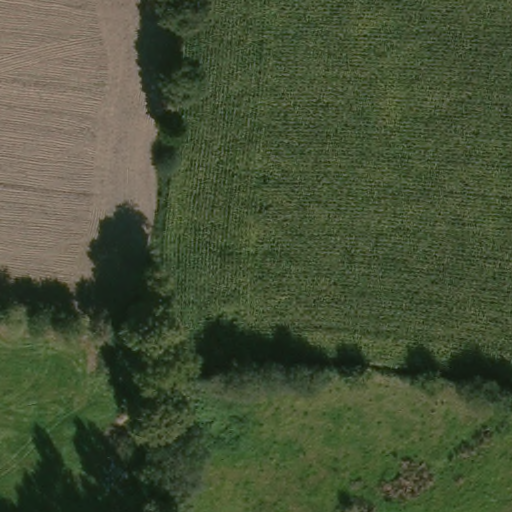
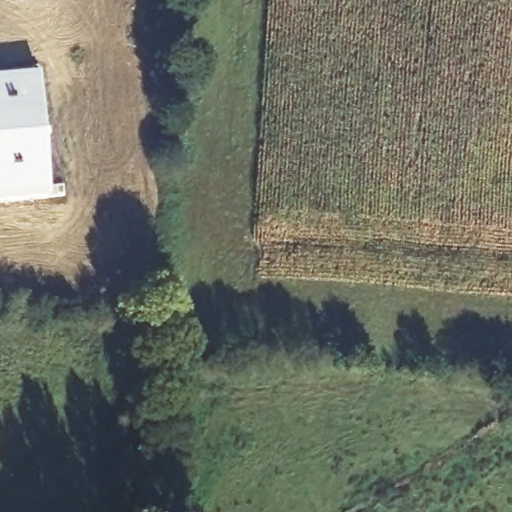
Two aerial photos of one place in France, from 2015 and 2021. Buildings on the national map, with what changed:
new [(53,69),(63,193),(0,198),(0,74),(53,69)]

